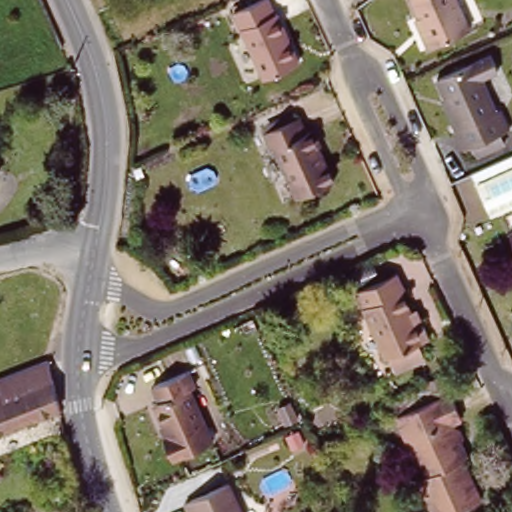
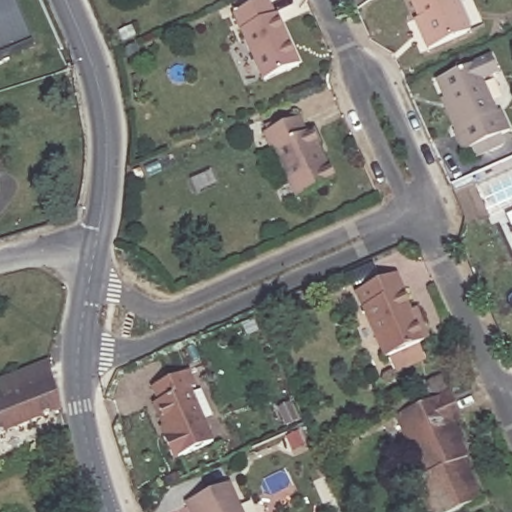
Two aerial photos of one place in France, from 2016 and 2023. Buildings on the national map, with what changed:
new [(33,46),(0,61),(0,0),(14,0),(33,46)]
unchanged [(233,11),(259,0),(267,0),(273,13),(276,12),(298,63),(264,78),(233,11)]
unchanged [(414,29),(418,28),(405,0),(451,0),(466,31),(424,49),(414,29)]
unchanged [(472,163),(468,153),(456,158),(448,138),(453,135),(432,86),(469,69),(487,61),(494,78),(477,87),(490,118),(495,116),(504,136),(494,141),(499,151),(472,163)]
unchanged [(273,149),(270,150),(263,133),(299,117),(306,132),(313,129),(320,144),(317,146),(333,182),(295,199),(273,149)]
demolished [(0,180),(0,164),(4,178),(0,180)]
unchanged [(393,377),(386,361),(383,362),(354,296),(397,278),(404,296),(401,298),(408,314),(414,312),(418,321),(428,343),(416,348),(423,364),(393,377)]
unchanged [(0,434),(0,379),(48,361),(61,410),(0,434)]
unchanged [(168,447),(172,446),(158,413),(163,411),(157,396),(197,378),(204,394),(193,398),(216,452),(178,469),(168,447)]
unchanged [(449,397),(461,423),(453,427),(463,450),(454,455),(458,464),(463,463),(481,504),(464,512),(429,512),(417,483),(422,481),(414,464),(394,421),(449,397)]
unchanged [(229,486),(240,512),(189,512),(186,506),(229,486)]

